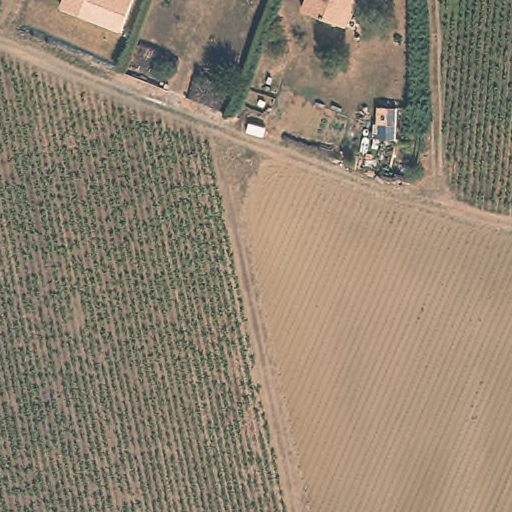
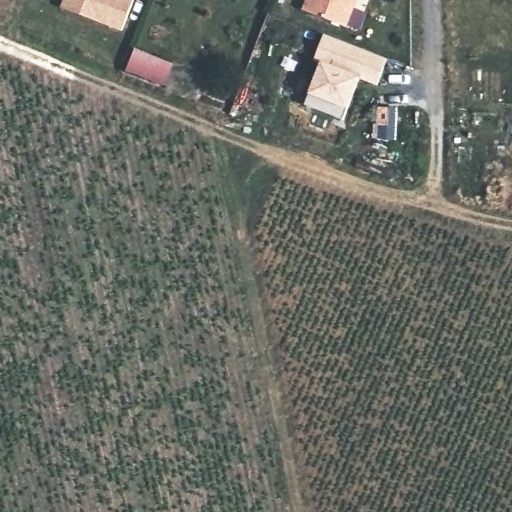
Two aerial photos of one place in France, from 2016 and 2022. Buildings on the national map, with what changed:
unchanged [(60,6),(63,0),(132,0),(121,30),(60,6)]
unchanged [(344,26),(329,21),(303,11),(307,0),(349,0),(347,5),(352,7),(344,26)]
new [(375,84),(357,77),(346,110),(342,119),(305,104),(310,95),(307,94),(319,64),(313,62),(324,34),(386,58),(375,84)]
unchanged [(173,65),(166,84),(126,71),(136,49),(173,65)]

